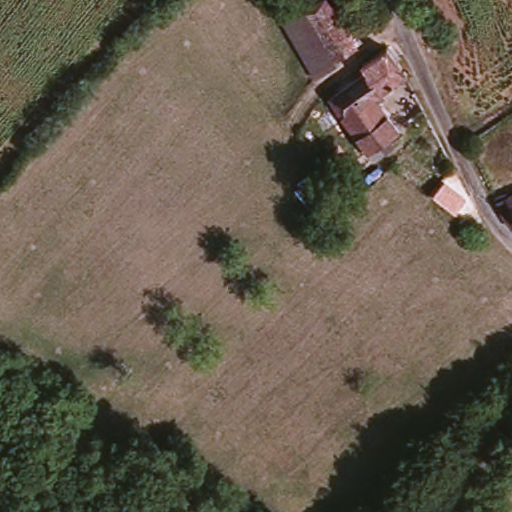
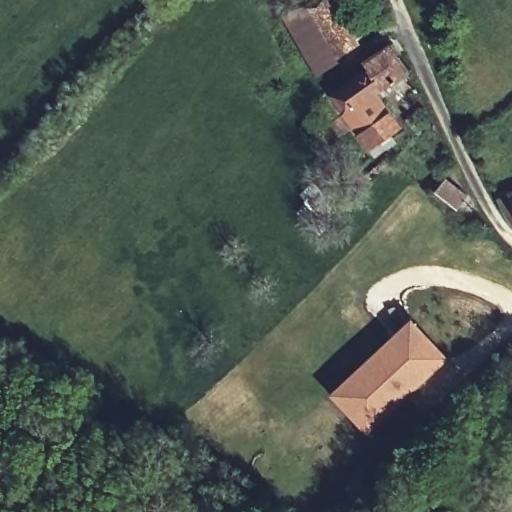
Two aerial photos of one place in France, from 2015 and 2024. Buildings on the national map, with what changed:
unchanged [(310,68),(283,23),(309,0),(329,0),(354,36),(333,54),(339,64),(315,81),(310,68)]
unchanged [(375,160),(333,98),(365,72),(360,64),(382,45),(399,68),(375,89),(370,95),(394,131),(384,141),(388,148),(375,160)]
unchanged [(496,204),(512,196),(512,221),(508,223),(496,204)]
new [(364,435),(328,395),(411,318),(450,359),(364,435)]

